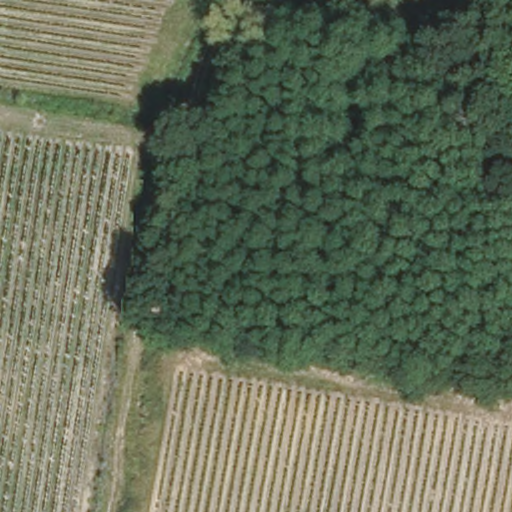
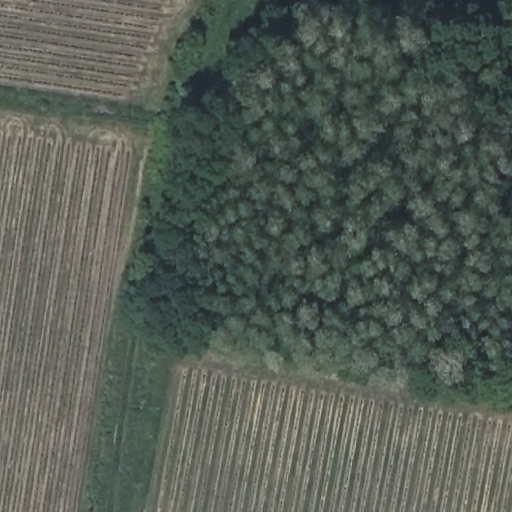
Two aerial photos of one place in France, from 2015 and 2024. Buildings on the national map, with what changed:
[]

